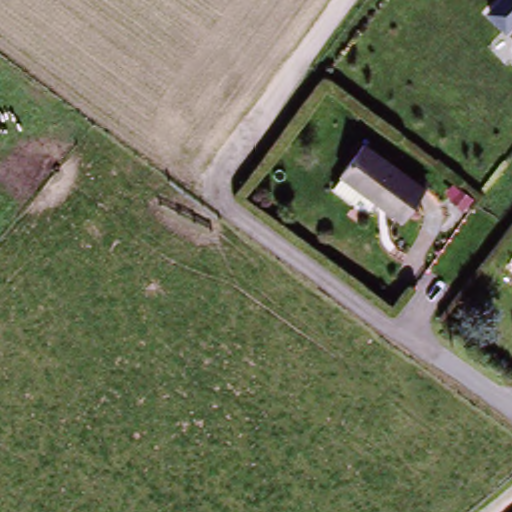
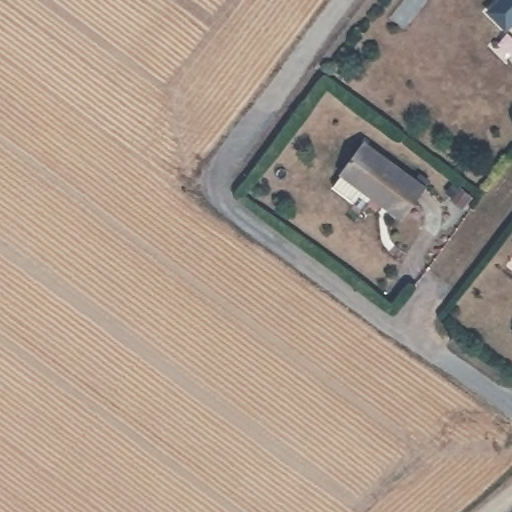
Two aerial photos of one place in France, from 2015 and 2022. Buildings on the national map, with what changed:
unchanged [(492,0),(512,0),(512,24),(504,31),(486,5),(492,0)]
unchanged [(407,207),(379,187),(375,193),(367,187),(363,192),(342,177),(350,166),(371,137),(428,178),(407,207)]
unchanged [(472,196),(463,207),(452,199),(453,197),(446,191),(452,182),(460,189),(461,187),(472,196)]

